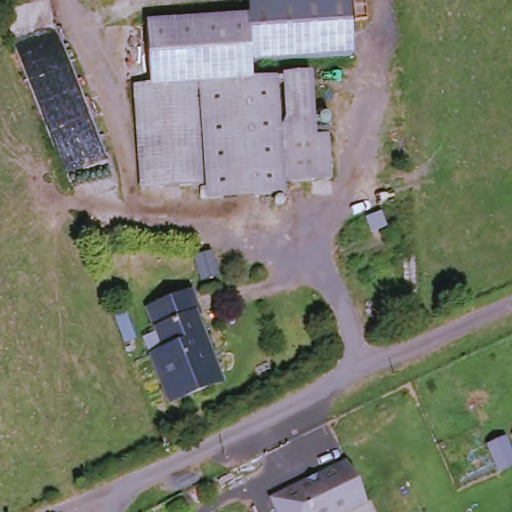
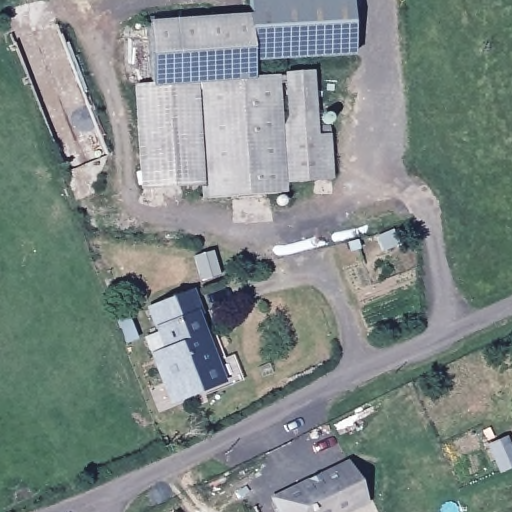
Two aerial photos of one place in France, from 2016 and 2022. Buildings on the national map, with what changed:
unchanged [(253,23),(249,0),(354,0),(354,62),(260,64),(253,23)]
unchanged [(195,202),(195,190),(204,190),(201,89),(193,89),(197,183),(138,183),(134,84),(152,84),(153,19),(253,23),(260,64),(250,64),(250,86),(265,86),(282,189),(284,200),(195,202)]
unchanged [(265,86),(288,88),(288,81),(312,83),(315,149),(326,148),(326,191),(282,189),(265,86)]
unchanged [(225,387),(216,391),(172,407),(155,360),(167,354),(150,314),(192,299),(199,320),(195,322),(204,345),(208,344),(225,387)]
unchanged [(140,342),(134,344),(122,315),(131,313),(140,342)]
unchanged [(370,508),(363,512),(275,512),(270,503),(347,462),(370,508)]

